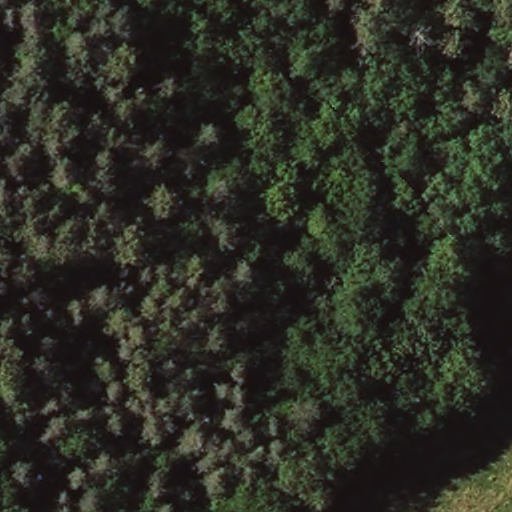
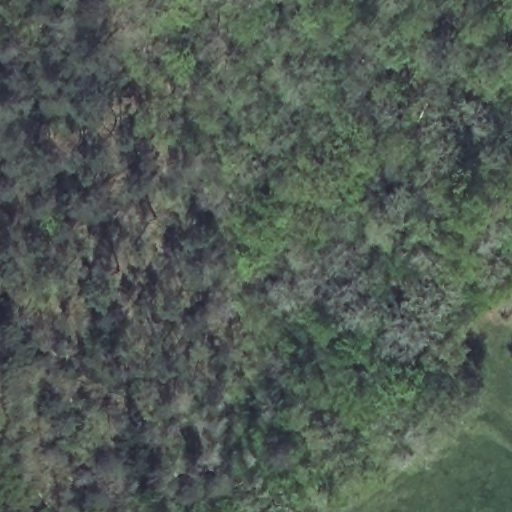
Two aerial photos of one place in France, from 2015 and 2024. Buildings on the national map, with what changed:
unchanged [(490,299),(512,274),(512,307),(508,312),(490,299)]

